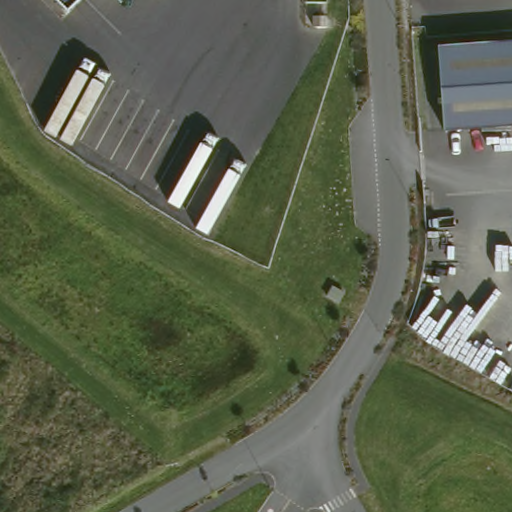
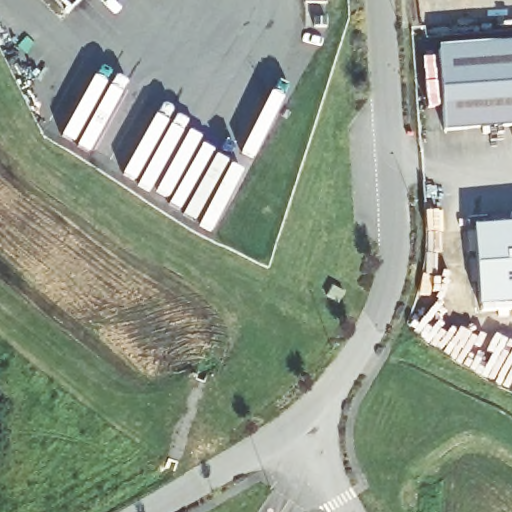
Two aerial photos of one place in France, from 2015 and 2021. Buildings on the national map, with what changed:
unchanged [(68,20),(49,0),(89,0),(68,20)]
unchanged [(512,41),(512,124),(449,127),(448,45),(512,41)]
new [(512,224),(512,303),(484,305),(478,226),(512,224)]

